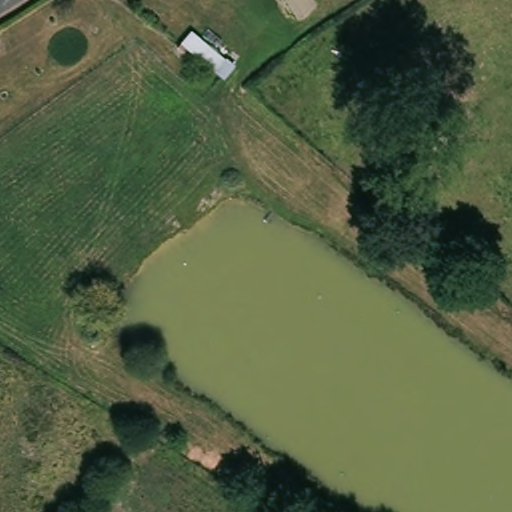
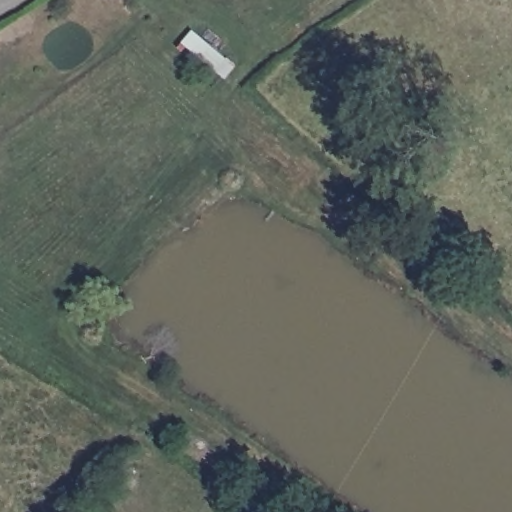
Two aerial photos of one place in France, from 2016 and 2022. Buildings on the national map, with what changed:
unchanged [(240,63),(229,77),(184,46),(196,30),(240,63)]

